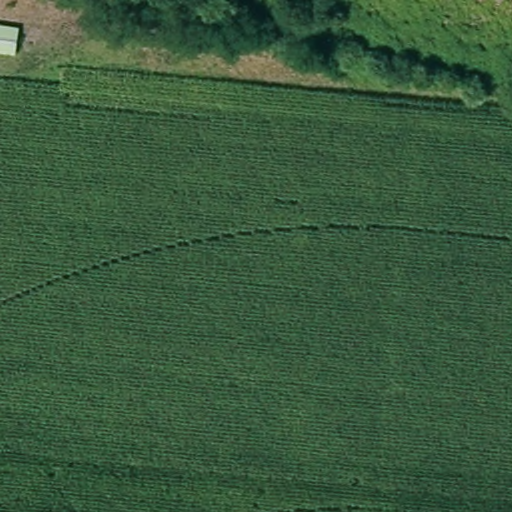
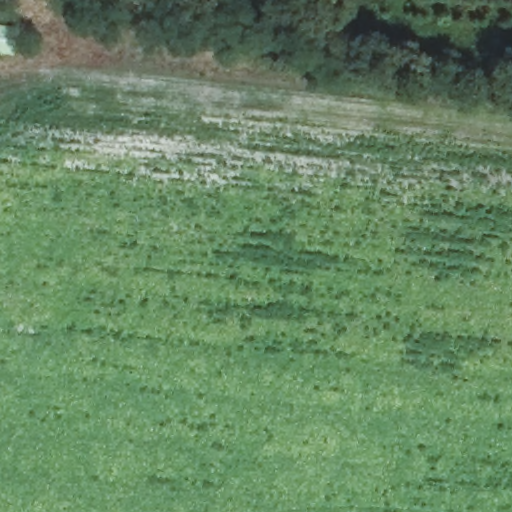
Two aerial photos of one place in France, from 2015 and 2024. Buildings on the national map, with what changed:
unchanged [(15,56),(0,54),(0,23),(20,26),(15,56)]

